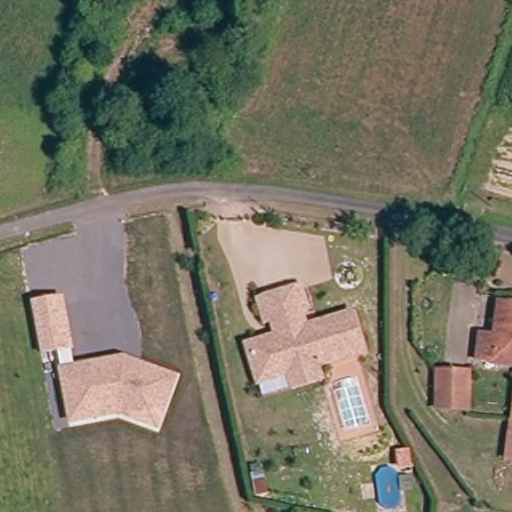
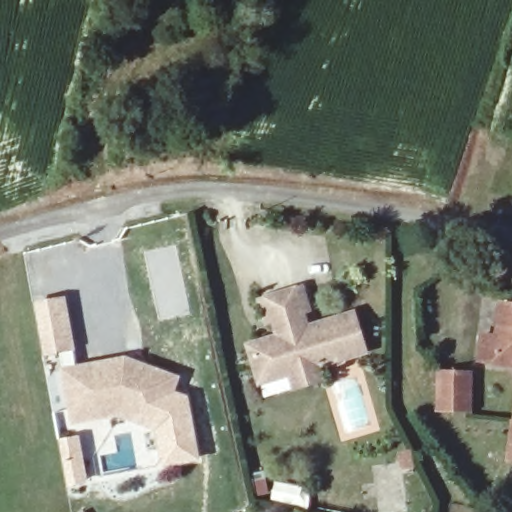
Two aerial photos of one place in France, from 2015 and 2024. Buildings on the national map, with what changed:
unchanged [(331,382),(302,391),(298,377),(291,380),(268,387),(257,348),(279,341),(287,340),(282,324),(276,326),(270,303),(310,291),(317,313),(311,315),(316,330),(362,316),(373,355),(330,368),(327,369),(331,382)]
unchanged [(119,415),(70,425),(57,353),(43,356),(32,300),(63,295),(76,363),(122,356),(180,377),(160,431),(119,415)]
unchanged [(492,330),(496,300),(512,301),(512,368),(477,362),(478,330),(492,330)]
unchanged [(435,407),(437,373),(472,376),(469,410),(435,407)]
new [(156,430),(160,431),(175,390),(189,395),(200,461),(162,467),(156,430)]
unchanged [(505,460),(512,403),(512,461),(505,460)]
new [(80,435),(89,482),(73,486),(64,437),(80,435)]

